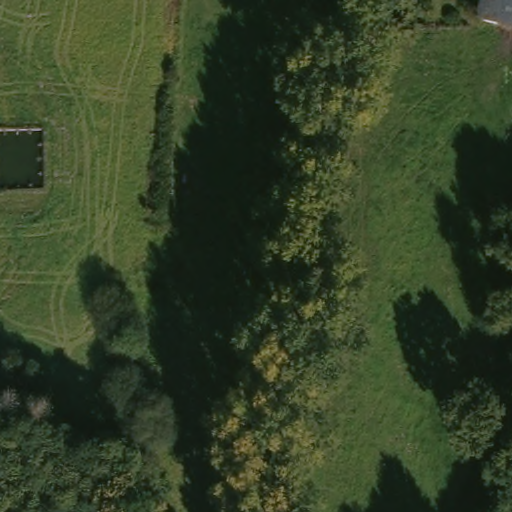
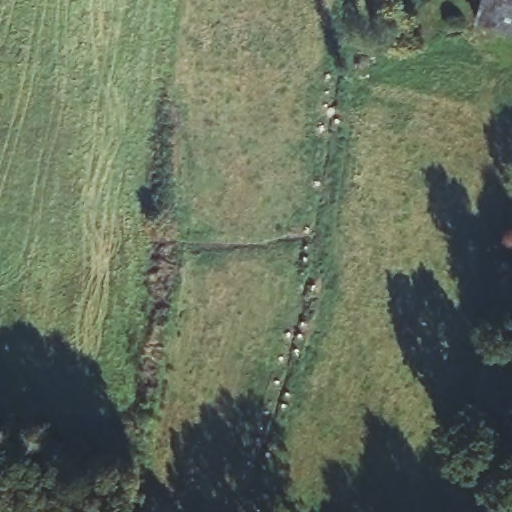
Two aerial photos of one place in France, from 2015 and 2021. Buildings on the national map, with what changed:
unchanged [(494,0),(512,0),(512,24),(489,19),(494,0)]

